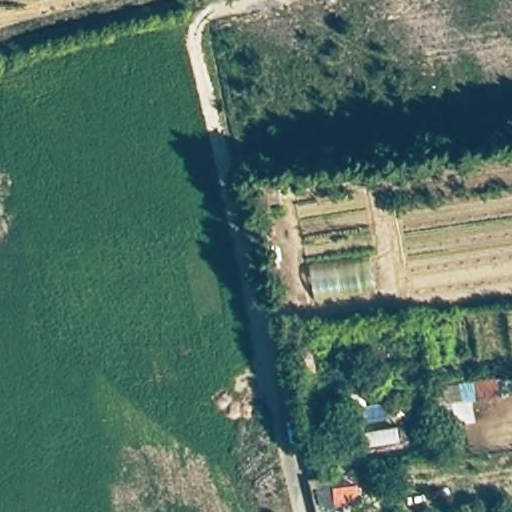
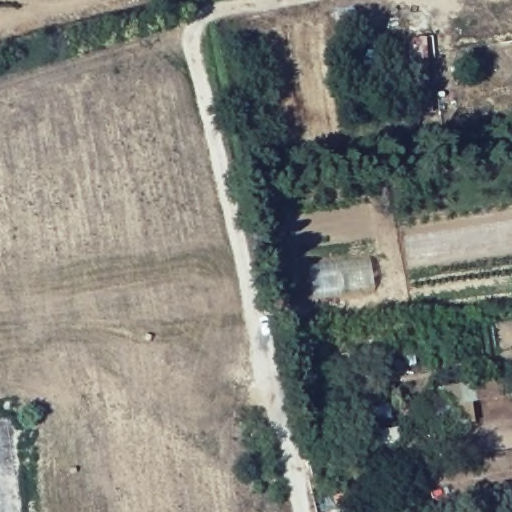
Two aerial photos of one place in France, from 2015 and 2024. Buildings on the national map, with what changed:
unchanged [(280,210),(254,216),(250,186),(276,182),(280,210)]
unchanged [(321,383),(291,393),(285,350),(313,343),(321,383)]

